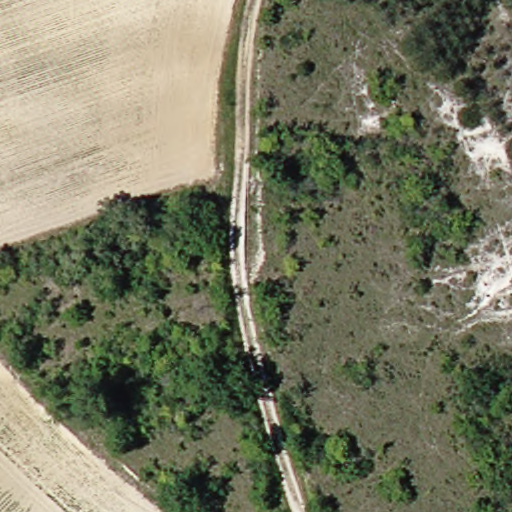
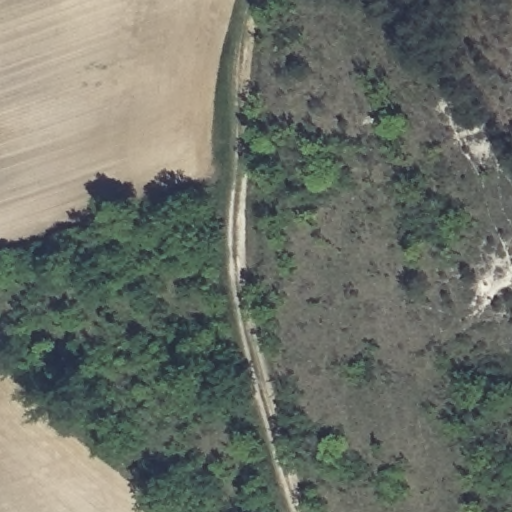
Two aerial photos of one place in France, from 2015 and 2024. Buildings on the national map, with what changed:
[]

